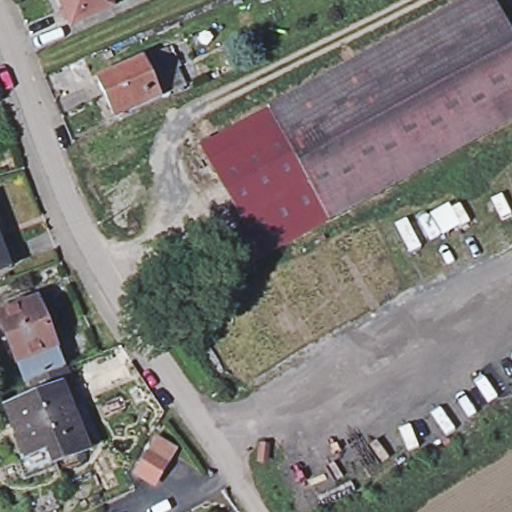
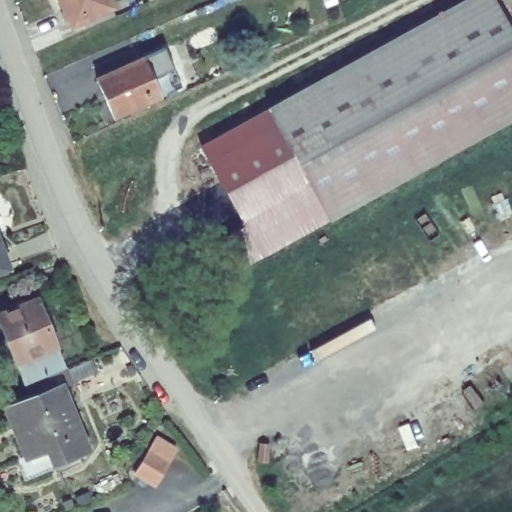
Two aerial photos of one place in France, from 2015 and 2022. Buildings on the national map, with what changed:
unchanged [(66,9),(62,0),(111,0),(114,6),(74,24),(71,18),(67,20),(63,11),(66,9)]
unchanged [(330,75),(490,0),(497,0),(512,27),(512,94),(367,171),(319,197),(310,182),(243,220),(203,146),(330,75)]
unchanged [(490,0),(330,75),(463,0),(490,0)]
unchanged [(183,79),(155,86),(161,96),(111,117),(93,76),(143,56),(166,45),(183,79)]
unchanged [(512,94),(512,117),(330,219),(319,197),(367,171),(512,94)]
unchanged [(228,247),(223,239),(246,225),(243,220),(310,182),(319,197),(330,219),(263,256),(240,269),(228,247)]
unchanged [(11,269),(0,273),(0,239),(11,269)]
unchanged [(45,447),(25,455),(5,408),(35,396),(29,382),(23,385),(14,362),(0,325),(0,313),(34,300),(53,347),(61,369),(68,385),(59,389),(83,449),(51,462),(45,447)]
unchanged [(168,461),(154,483),(136,472),(149,450),(168,461)]

